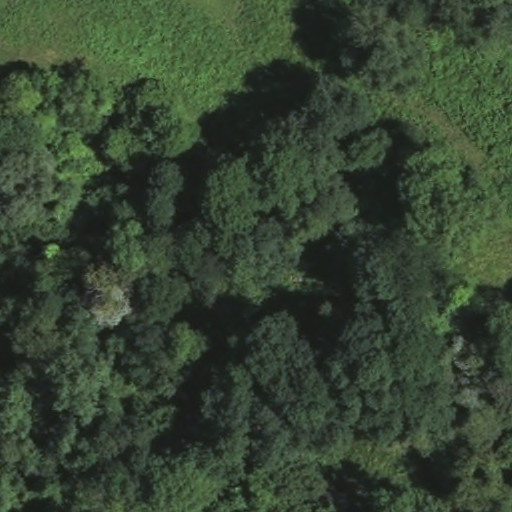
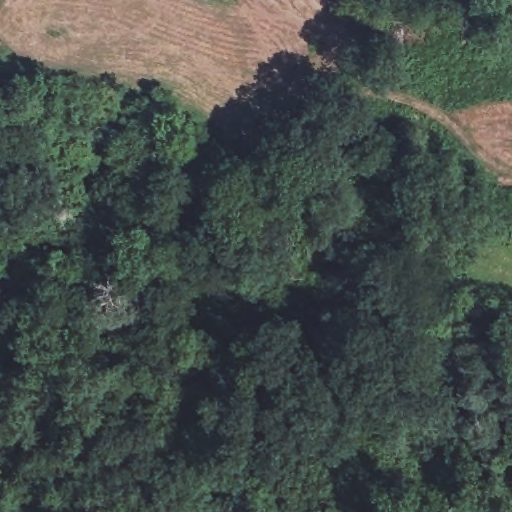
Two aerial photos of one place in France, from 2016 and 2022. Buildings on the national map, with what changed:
[]

